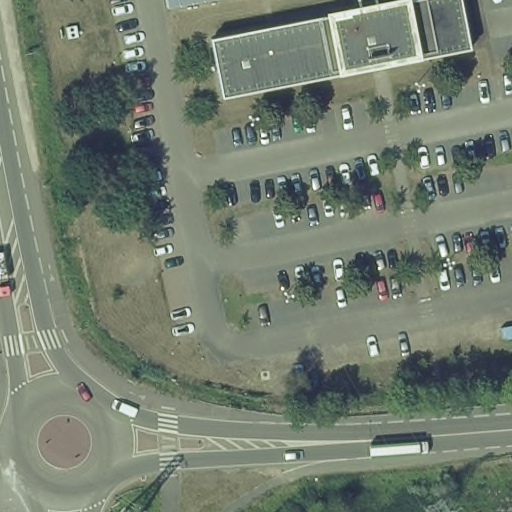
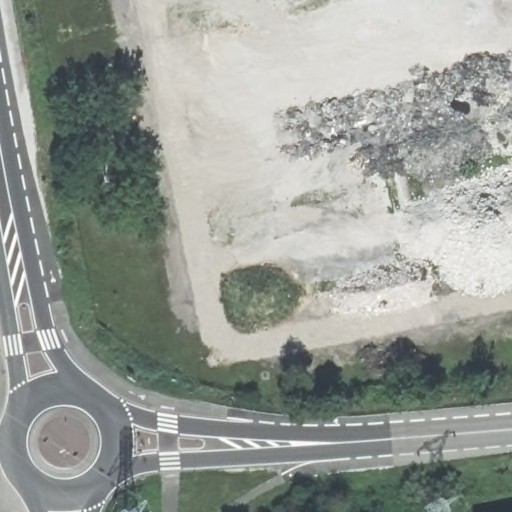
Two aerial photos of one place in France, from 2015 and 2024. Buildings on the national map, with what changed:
demolished [(166,0),(207,0),(167,7),(166,0)]
new [(172,0),(220,0),(174,9),(172,0)]
demolished [(355,0),(391,0),(391,1),(397,0),(478,0),(478,54),(223,99),(201,41),(356,14),(355,0)]
new [(389,5),(389,0),(396,0),(397,2),(410,0),(465,0),(475,50),(393,65),(392,61),(376,65),(376,69),(357,72),(346,14),(363,10),(361,0),(381,0),(383,6),(389,5)]
new [(346,14),(357,72),(228,98),(216,39),(346,14)]
new [(76,26),(78,37),(68,39),(66,29),(76,26)]

